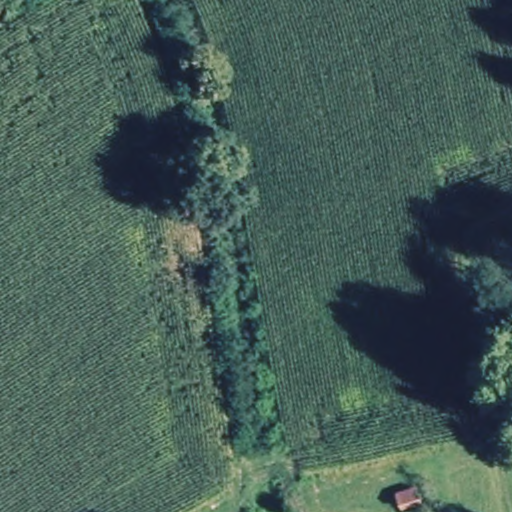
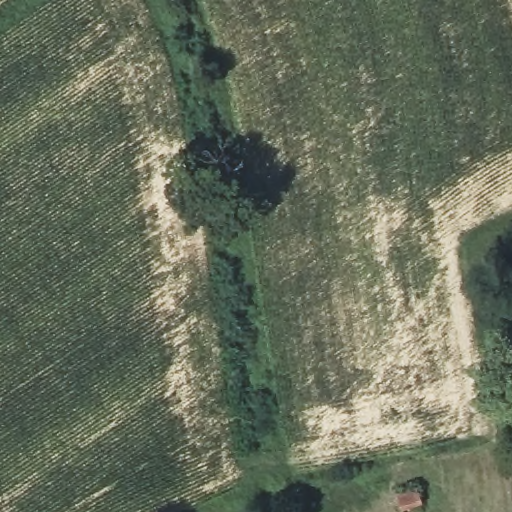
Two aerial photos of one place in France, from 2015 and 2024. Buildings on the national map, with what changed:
unchanged [(413,512),(393,512),(410,505),(413,512)]

